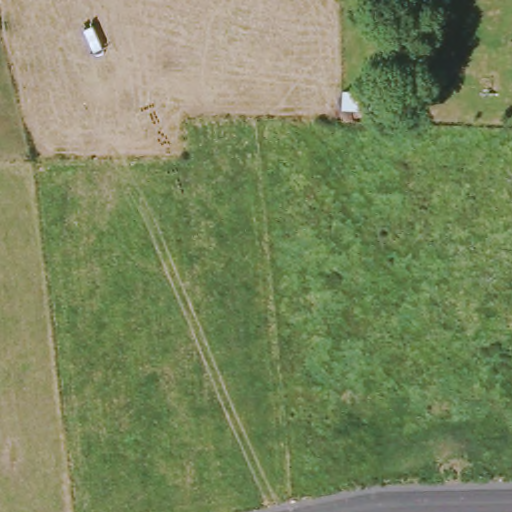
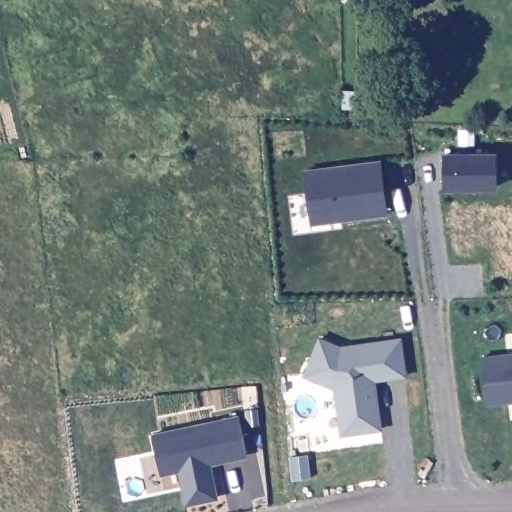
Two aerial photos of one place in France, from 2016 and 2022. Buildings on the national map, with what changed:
new [(496,151),(497,188),(445,189),(445,152),(496,151)]
new [(305,170),(382,160),(388,215),(312,225),(305,170)]
new [(341,435),(339,420),(335,388),(304,376),(317,340),(340,346),(400,338),(405,376),(374,380),(378,415),(380,430),(341,435)]
new [(512,354),(512,401),(487,403),(482,358),(512,354)]
new [(239,417),(246,453),(208,461),(217,497),(187,503),(180,470),(161,473),(152,435),(239,417)]

